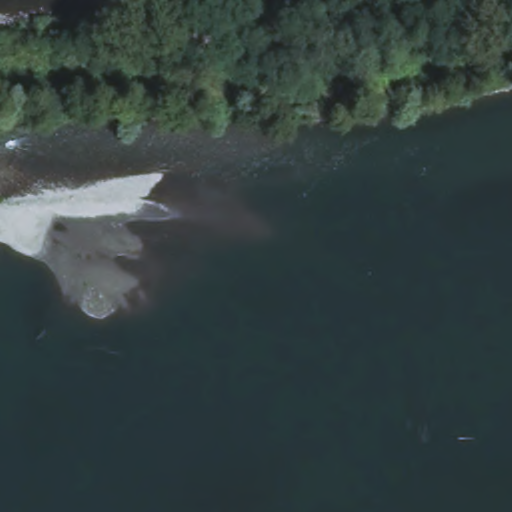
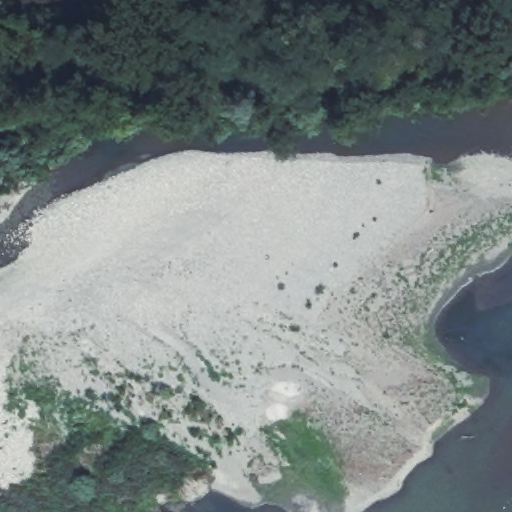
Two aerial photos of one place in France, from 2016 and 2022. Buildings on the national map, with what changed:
[]

